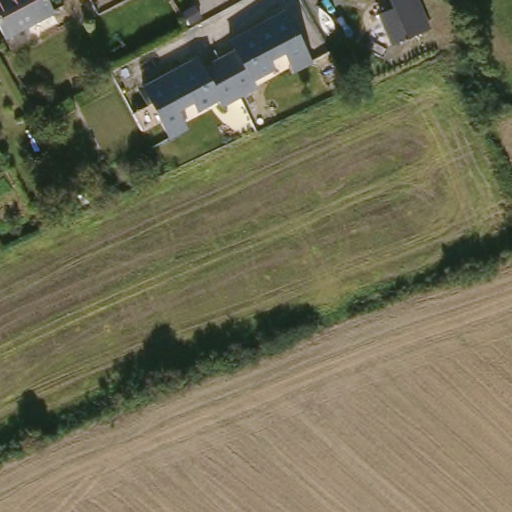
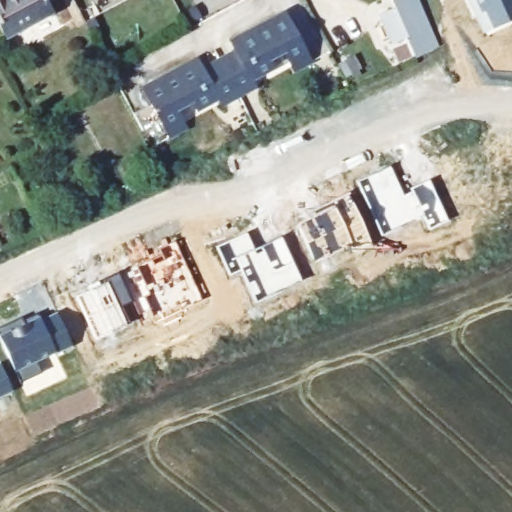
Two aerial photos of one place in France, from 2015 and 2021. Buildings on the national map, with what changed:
unchanged [(57,9),(10,36),(0,18),(0,0),(52,0),(57,9)]
unchanged [(435,24),(428,26),(413,32),(400,0),(426,0),(435,24)]
unchanged [(192,56),(199,66),(232,47),(226,39),(283,8),(311,59),(291,71),(282,54),(269,61),(273,69),(249,80),(253,86),(195,114),(189,106),(179,112),(187,128),(166,138),(139,85),(192,56)]
new [(391,168),(403,194),(412,190),(410,186),(428,177),(450,222),(432,231),(425,219),(384,238),(358,183),(391,168)]
new [(315,211),(332,202),(349,194),(372,241),(353,249),(349,240),(313,257),(297,224),(317,215),(315,211)]
new [(248,234),(256,251),(263,248),(261,244),(281,234),(304,283),(259,304),(243,272),(232,277),(218,248),(248,234)]
new [(154,258),(156,264),(166,259),(161,248),(174,241),(202,302),(181,311),(179,306),(155,317),(152,311),(142,315),(135,301),(122,273),(154,258)]
new [(107,283),(106,279),(121,272),(122,273),(135,301),(126,306),(134,323),(99,340),(79,296),(107,283)]
new [(26,320),(40,313),(43,317),(44,321),(60,313),(75,345),(58,353),(58,352),(40,360),(46,373),(24,383),(0,332),(0,329),(25,317),(26,320)]
new [(4,364),(17,391),(0,399),(0,366),(4,364)]

